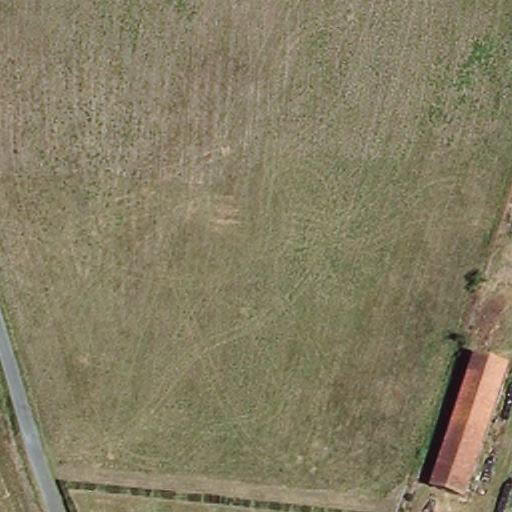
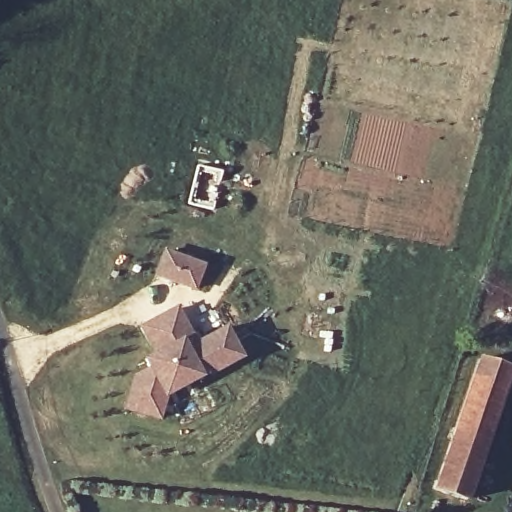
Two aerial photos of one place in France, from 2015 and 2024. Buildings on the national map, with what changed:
new [(162,251),(200,265),(191,288),(154,274),(162,251)]
new [(131,377),(147,368),(142,359),(153,354),(138,326),(172,308),(195,347),(205,341),(203,337),(222,326),(238,355),(207,372),(203,363),(194,368),(197,374),(162,394),(156,416),(123,408),(131,377)]
unchanged [(462,498),(433,488),(478,362),(507,373),(462,498)]

